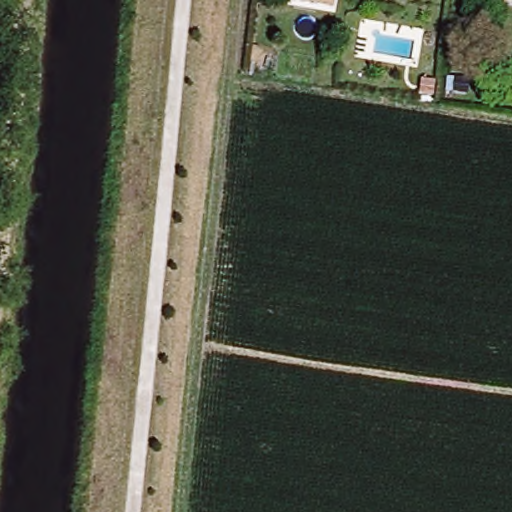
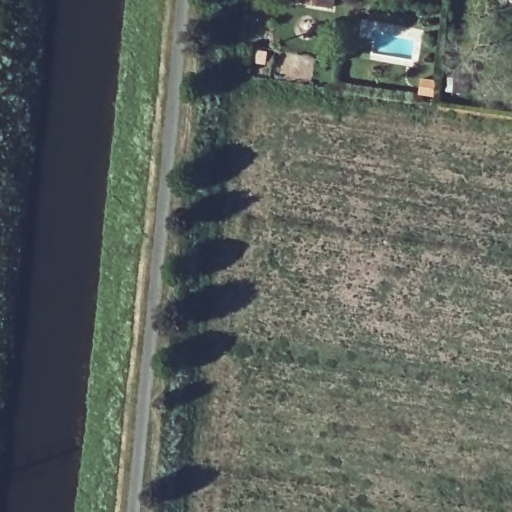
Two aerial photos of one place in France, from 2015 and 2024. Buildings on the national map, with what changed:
unchanged [(296,6),(297,0),(332,0),(331,10),(296,6)]

